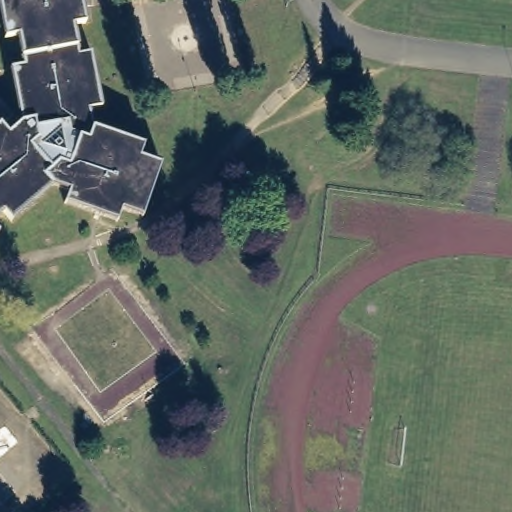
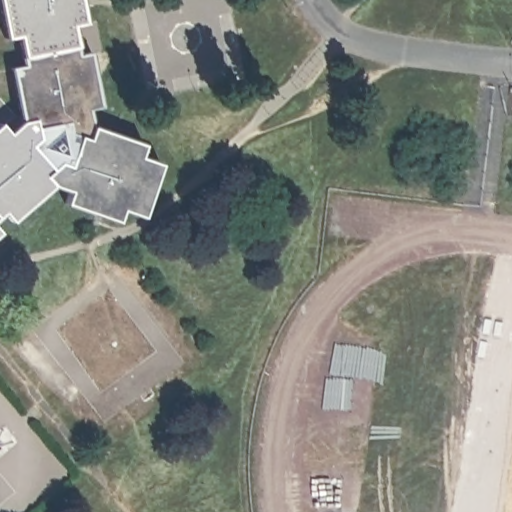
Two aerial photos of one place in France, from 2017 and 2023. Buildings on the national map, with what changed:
unchanged [(75,25),(79,51),(92,49),(103,104),(90,106),(94,128),(143,141),(140,154),(162,162),(143,217),(123,208),(117,221),(67,205),(68,193),(53,186),(14,223),(5,214),(0,217),(0,126),(10,134),(23,123),(8,73),(22,66),(18,38),(2,41),(0,33),(0,0),(83,0),(87,23),(75,25)]

